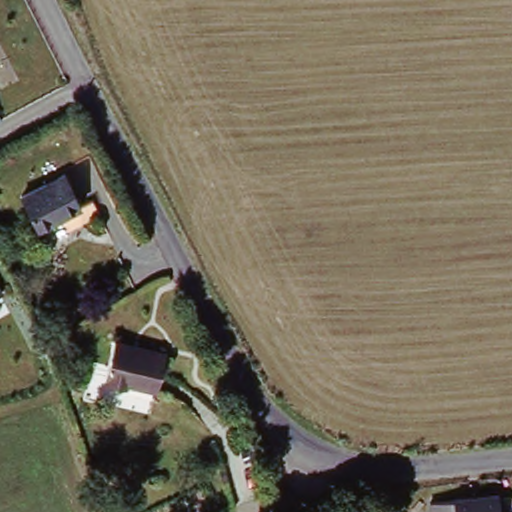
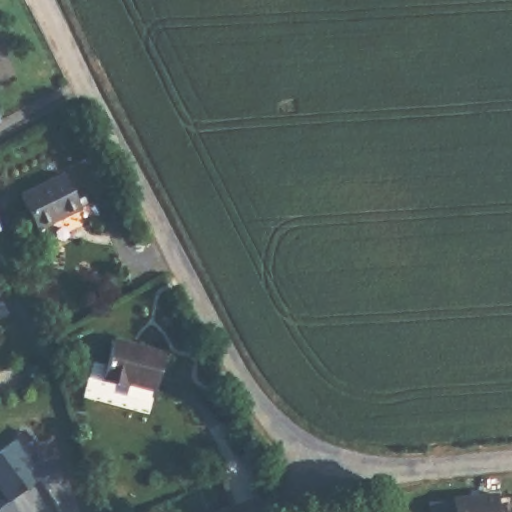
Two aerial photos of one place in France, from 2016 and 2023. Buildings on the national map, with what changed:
unchanged [(0,133),(0,110),(8,129),(0,133)]
unchanged [(68,177),(83,215),(41,234),(26,197),(68,177)]
unchanged [(0,294),(0,287),(3,292),(0,294)]
unchanged [(176,357),(168,396),(139,387),(136,401),(113,395),(119,368),(114,367),(121,340),(176,357)]
new [(29,460),(43,476),(9,501),(20,512),(0,512),(0,450),(25,430),(39,451),(29,460)]
unchanged [(492,498),(494,512),(425,512),(424,507),(492,498)]

